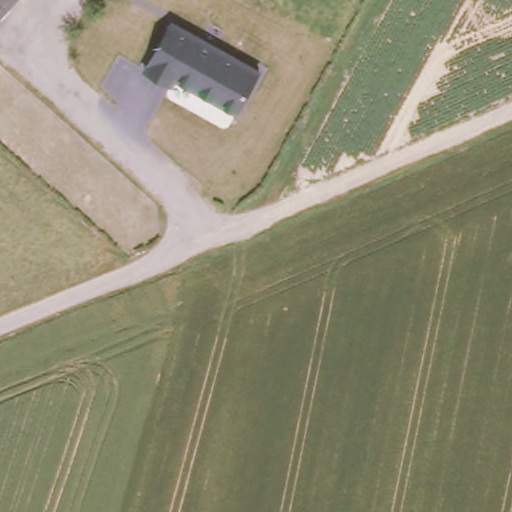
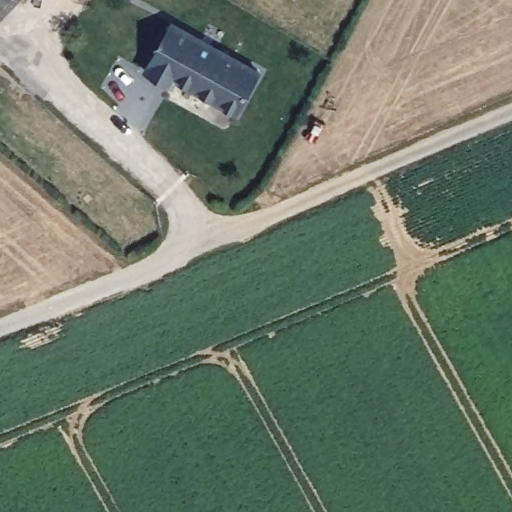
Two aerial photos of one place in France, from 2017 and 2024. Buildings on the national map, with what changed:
unchanged [(1,15),(0,15),(0,0),(14,0),(1,15)]
unchanged [(238,115),(177,81),(174,87),(143,70),(173,19),(261,70),(238,115)]

